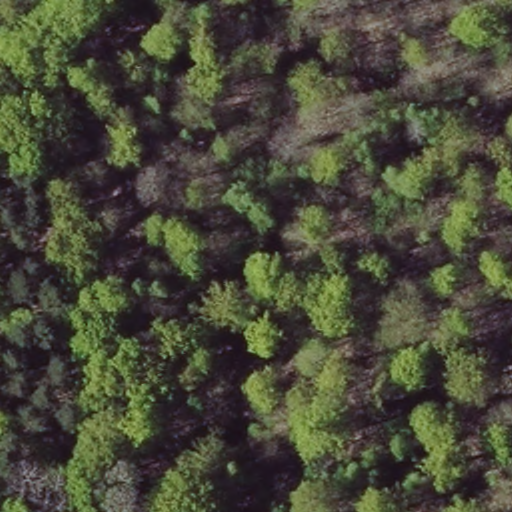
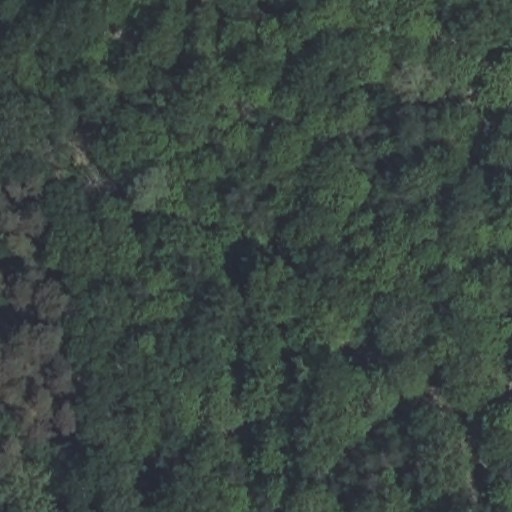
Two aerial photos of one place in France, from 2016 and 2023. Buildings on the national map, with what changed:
[]

